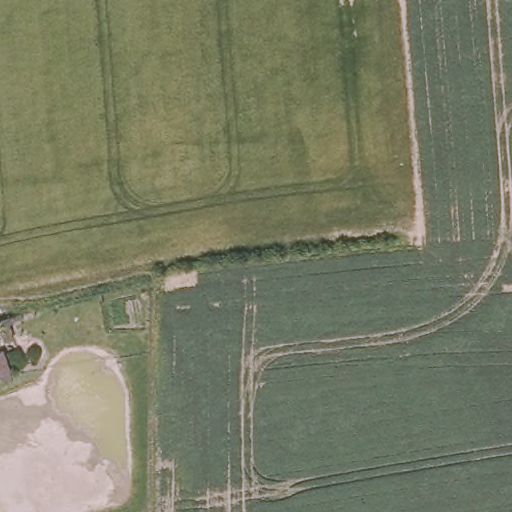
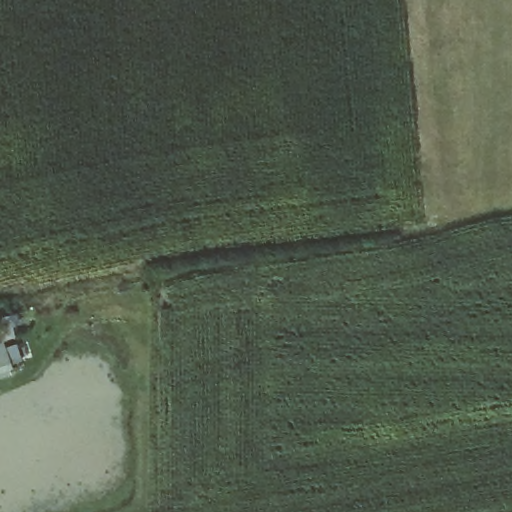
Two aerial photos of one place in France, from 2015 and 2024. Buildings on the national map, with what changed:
unchanged [(16,373),(0,380),(0,343),(2,342),(16,373)]

